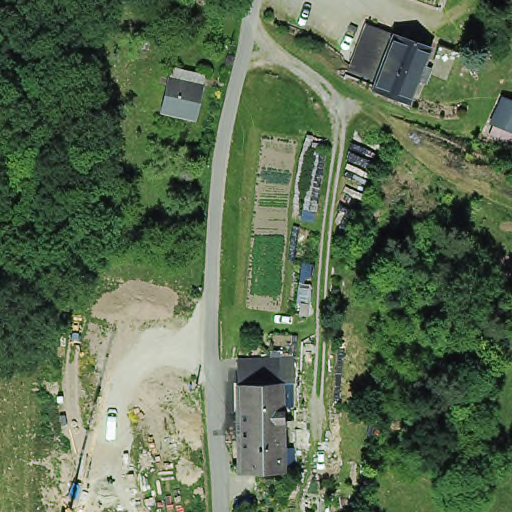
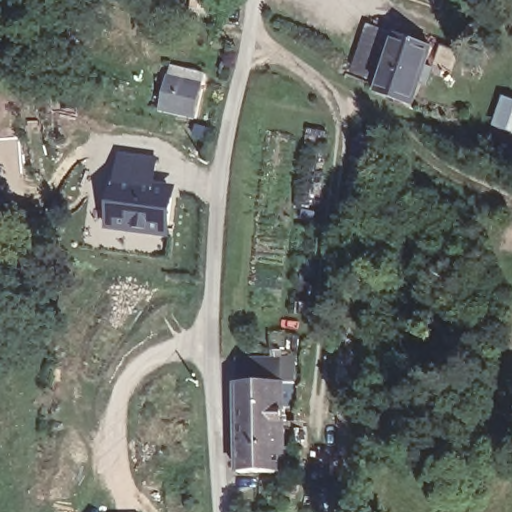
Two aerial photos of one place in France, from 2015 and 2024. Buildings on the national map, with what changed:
unchanged [(380,88),(364,83),(367,70),(358,67),(371,22),(397,30),(380,88)]
unchanged [(434,41),(417,99),(380,88),(397,30),(434,41)]
unchanged [(448,72),(432,66),(440,39),(456,45),(448,72)]
unchanged [(202,119),(168,110),(177,66),(212,73),(202,119)]
unchanged [(512,88),(512,148),(490,138),(510,86),(512,88)]
new [(157,158),(154,187),(155,187),(154,195),(172,197),(167,231),(112,225),(122,154),(157,158)]
unchanged [(237,357),(282,357),(283,381),(238,381),(237,357)]
unchanged [(240,470),(239,420),(238,381),(283,381),(284,408),(295,408),(295,420),(284,420),(285,469),(240,470)]

